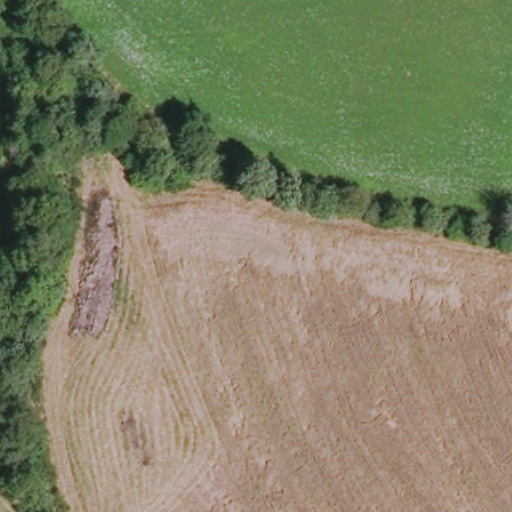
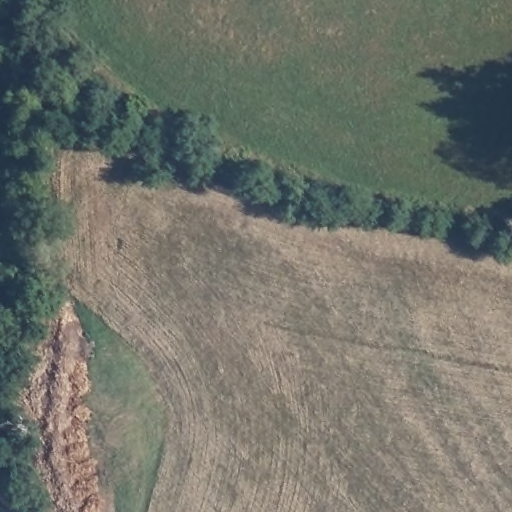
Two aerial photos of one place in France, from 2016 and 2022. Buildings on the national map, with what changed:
unchanged [(58,91),(48,85),(53,75),(65,79),(58,91)]

